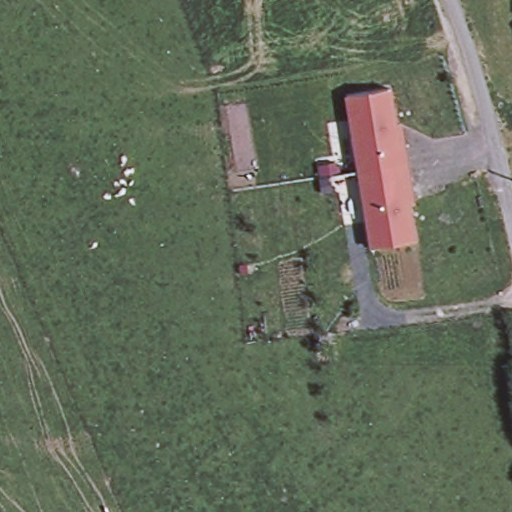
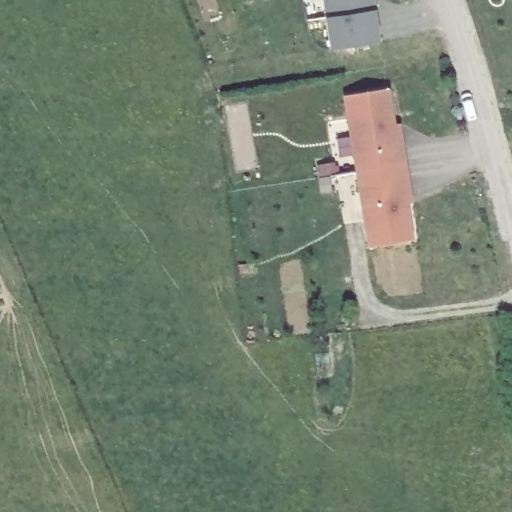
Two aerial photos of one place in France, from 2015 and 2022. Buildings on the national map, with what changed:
new [(378,8),(383,41),(330,50),(325,17),(323,0),(376,0),(378,8)]
unchanged [(366,241),(344,95),(387,88),(393,125),(399,124),(408,187),(402,189),(408,232),(366,241)]

